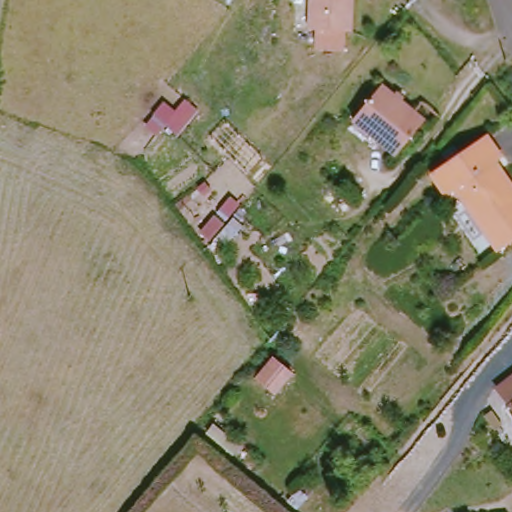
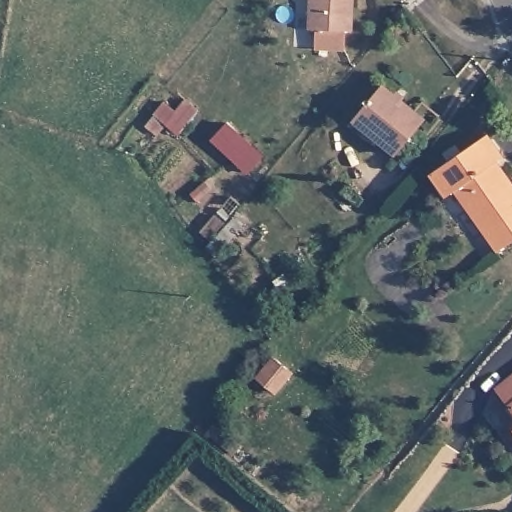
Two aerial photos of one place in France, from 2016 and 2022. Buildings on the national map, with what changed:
unchanged [(355,32),(317,30),(319,0),(357,0),(355,32)]
unchanged [(427,121),(397,158),(353,122),(383,86),(427,121)]
new [(247,172),(211,140),(227,122),(262,155),(247,172)]
unchanged [(505,160),(498,165),(512,184),(512,246),(502,253),(460,191),(450,198),(435,176),(490,138),(505,160)]
unchanged [(504,390),(512,383),(512,401),(504,390)]

